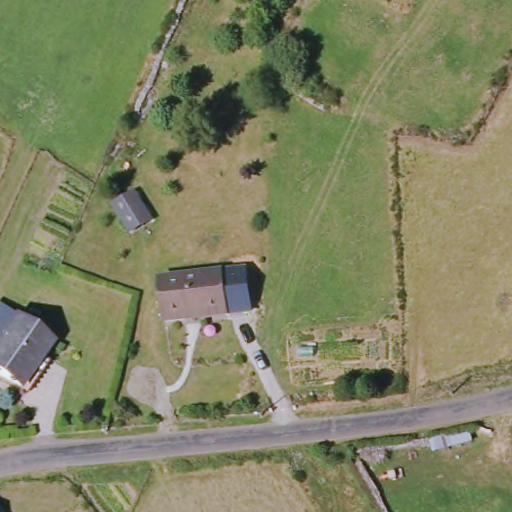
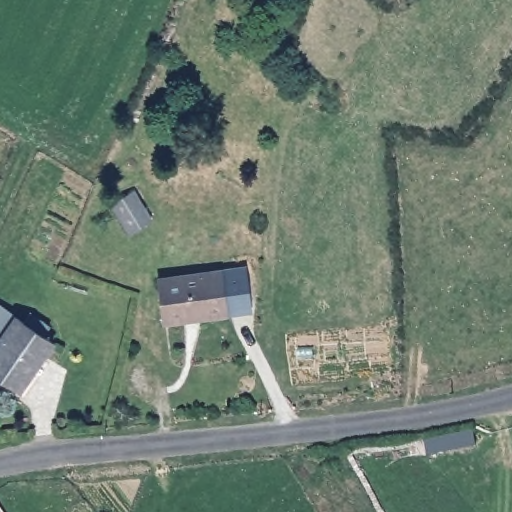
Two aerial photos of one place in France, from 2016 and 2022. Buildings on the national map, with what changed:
unchanged [(145,237),(126,209),(140,202),(148,197),(160,216),(165,224),(145,237)]
unchanged [(188,322),(169,323),(166,280),(230,277),(231,310),(231,318),(188,322)]
unchanged [(0,326),(5,316),(40,332),(63,344),(53,363),(31,353),(3,339),(0,346),(0,326)]
unchanged [(53,363),(33,404),(15,395),(0,387),(0,346),(3,339),(31,353),(53,363)]
unchanged [(0,512),(0,509),(2,512),(0,512)]

